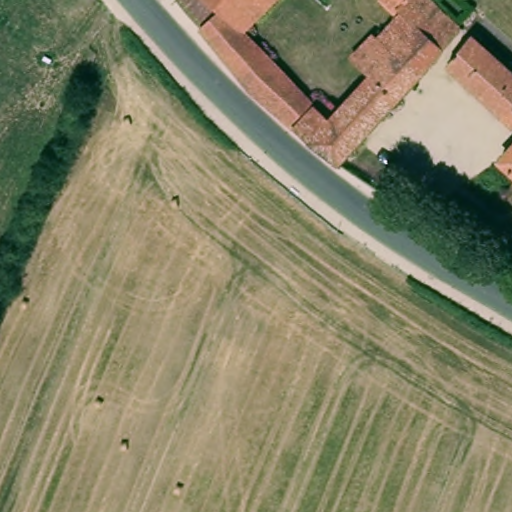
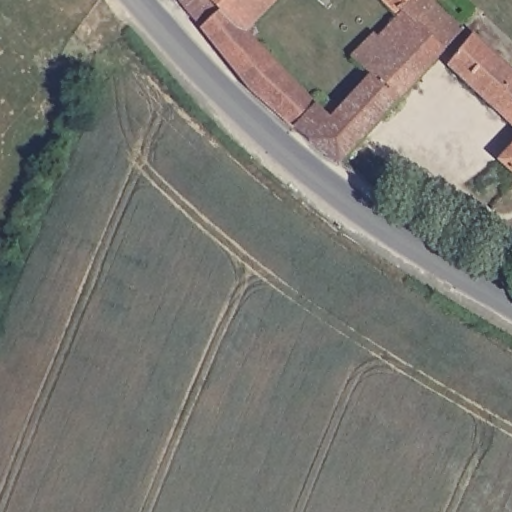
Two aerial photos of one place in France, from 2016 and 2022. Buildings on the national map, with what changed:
unchanged [(243,30),(219,53),(178,0),(273,0),(243,30)]
unchanged [(322,109),(330,99),(339,108),(370,75),(351,57),(375,31),(380,36),(403,11),(399,7),(396,12),(383,0),(432,0),(463,28),(340,163),(335,159),(318,147),(294,128),(315,104),(322,109)]
unchanged [(219,53),(243,30),(312,100),(289,124),(250,91),(219,53)]
unchanged [(446,66),(471,35),(512,74),(512,124),(446,66)]
unchanged [(512,148),(512,173),(499,162),(512,148)]

